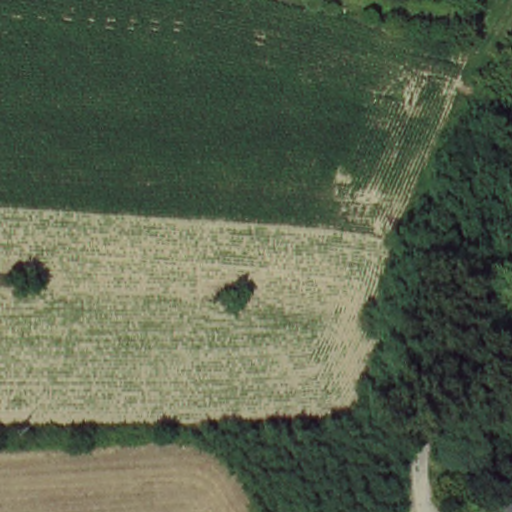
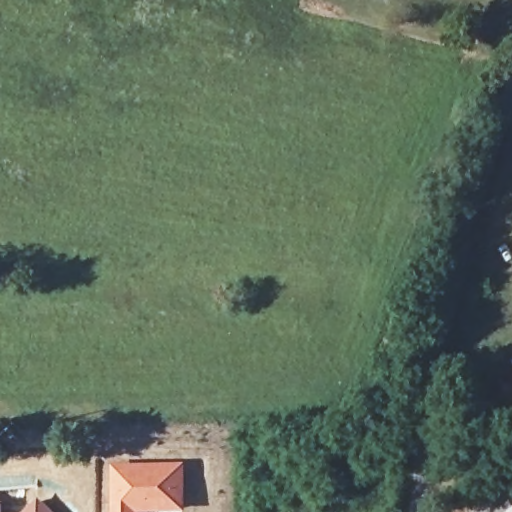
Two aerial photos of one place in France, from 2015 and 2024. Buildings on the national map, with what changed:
new [(183,461),(185,511),(153,512),(109,512),(109,460),(183,461)]
new [(54,512),(23,512),(38,498),(54,512)]
new [(3,512),(0,512),(0,500),(3,500),(3,512)]

